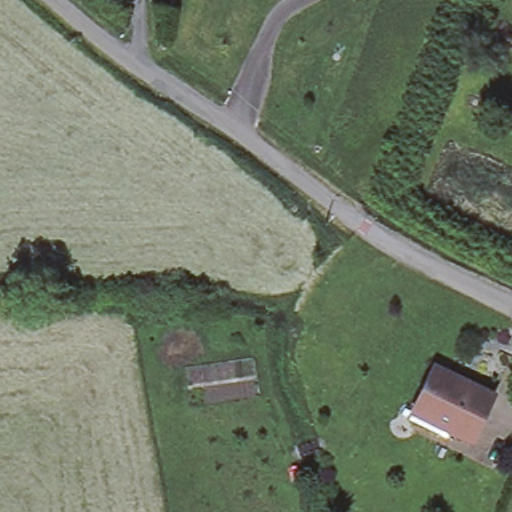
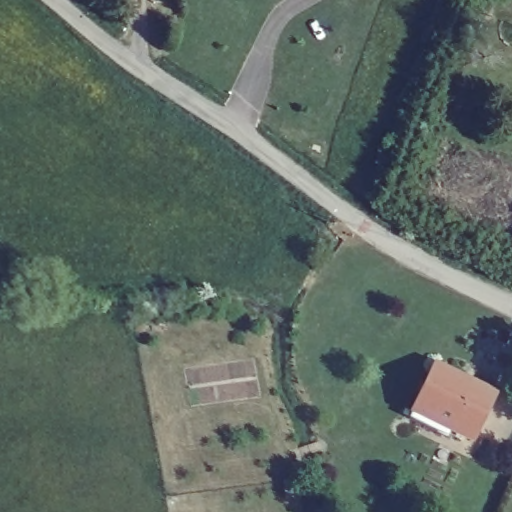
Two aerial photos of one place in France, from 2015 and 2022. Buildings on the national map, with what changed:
unchanged [(470,438),(448,428),(444,435),(407,417),(433,364),(492,393),(470,438)]

